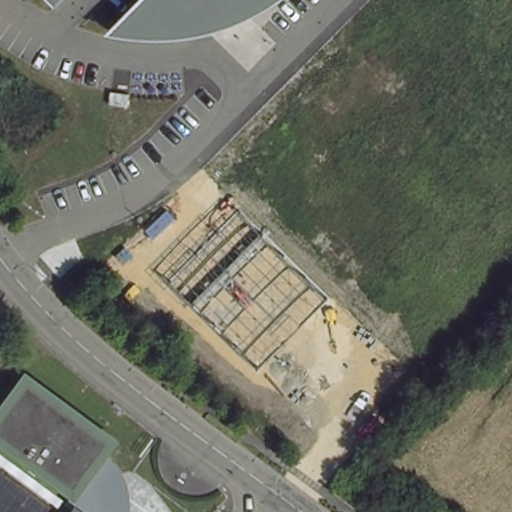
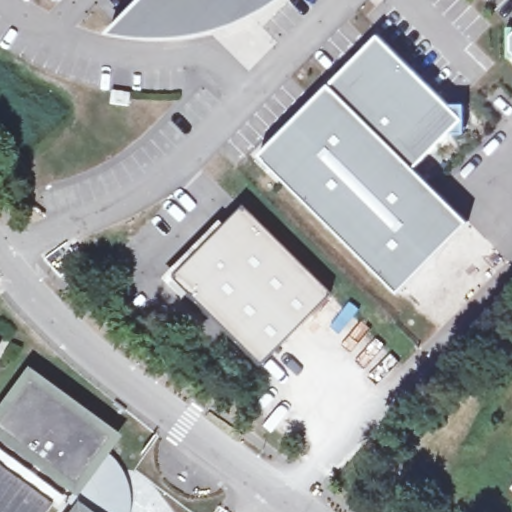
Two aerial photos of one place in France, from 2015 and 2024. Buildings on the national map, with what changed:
unchanged [(252,5),(240,12),(212,22),(179,28),(159,27),(111,23),(133,0),(262,0),(252,5)]
new [(505,59),(505,29),(512,29),(512,59),(505,59)]
new [(460,118),(412,167),(467,220),(396,292),(257,155),(375,34),(460,118)]
unchanged [(216,223),(223,229),(242,211),(329,297),(259,369),(184,294),(179,300),(161,281),(216,223)]
unchanged [(0,350),(0,339),(6,342),(0,350)]
unchanged [(105,443),(118,458),(129,480),(130,502),(127,512),(60,512),(65,506),(67,491),(0,443),(0,396),(19,370),(111,434),(105,443)]
unchanged [(45,512),(0,512),(0,470),(50,505),(45,512)]

